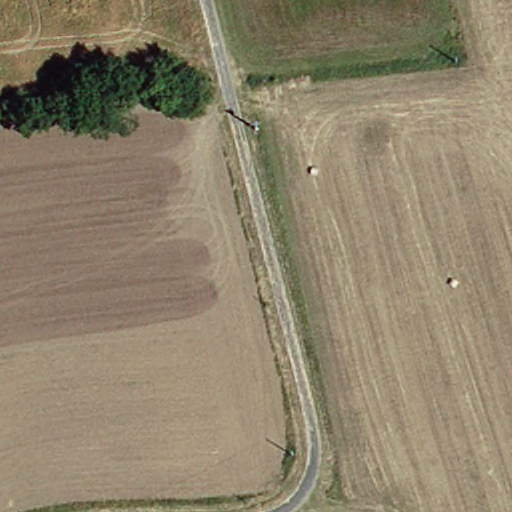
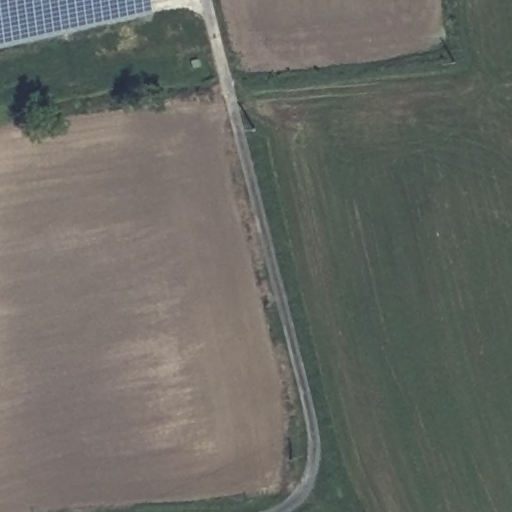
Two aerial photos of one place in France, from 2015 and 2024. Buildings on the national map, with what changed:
new [(138,20),(0,51),(0,0),(134,0),(138,20)]

